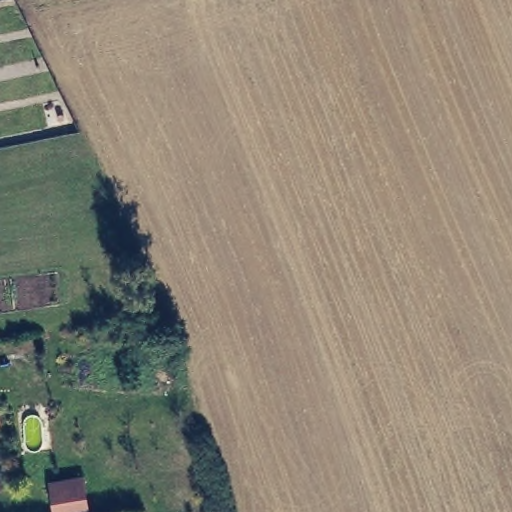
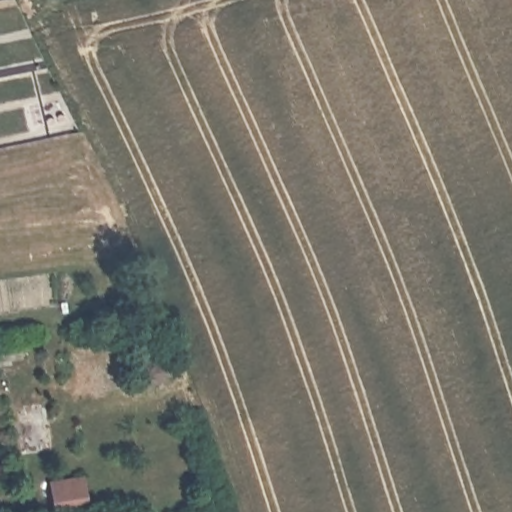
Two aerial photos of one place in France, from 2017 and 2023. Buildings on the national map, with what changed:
unchanged [(87,511),(80,512),(51,512),(47,480),(82,476),(87,511)]

